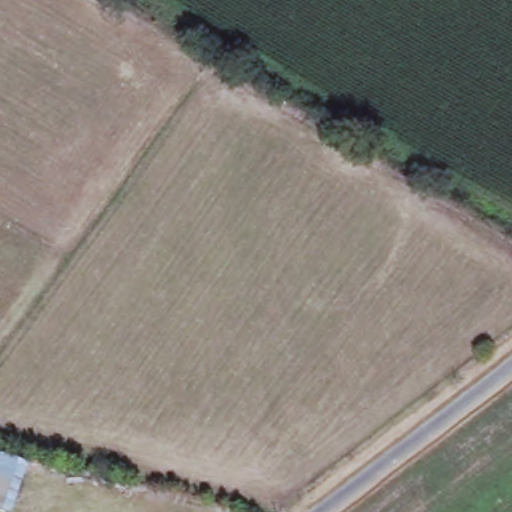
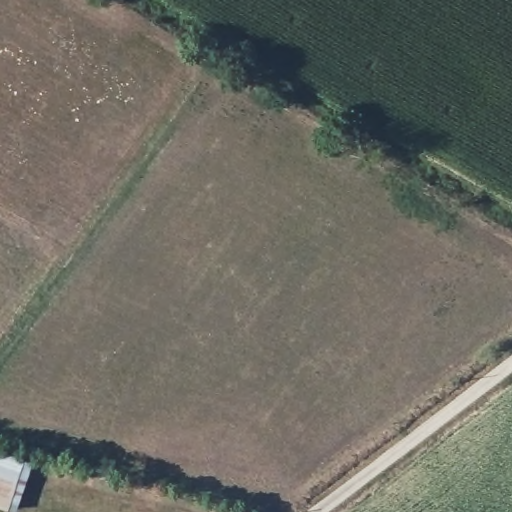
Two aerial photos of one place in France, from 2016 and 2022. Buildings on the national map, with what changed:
unchanged [(23,454),(10,508),(0,504),(0,447),(23,454)]

